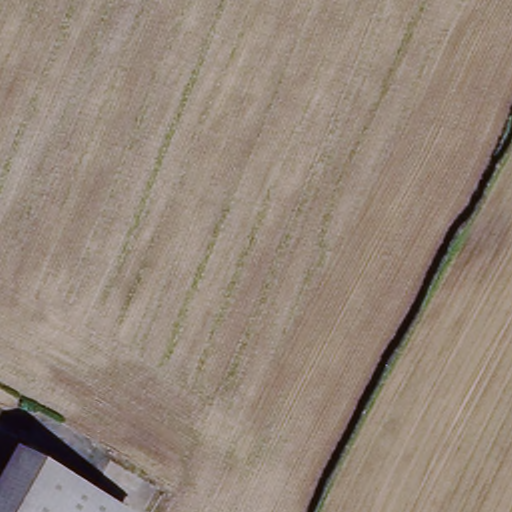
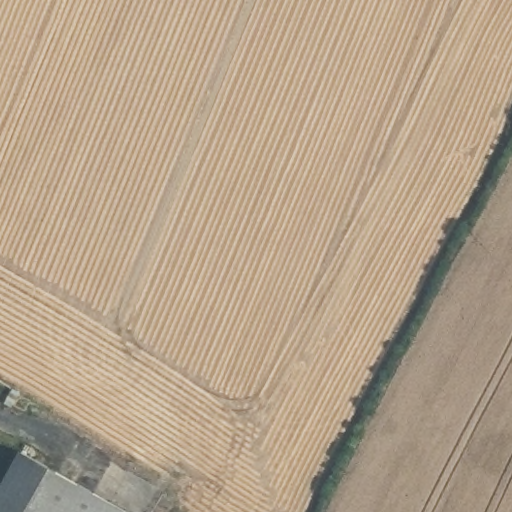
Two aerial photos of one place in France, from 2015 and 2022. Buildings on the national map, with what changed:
unchanged [(118,512),(0,512),(0,501),(19,462),(118,512)]

